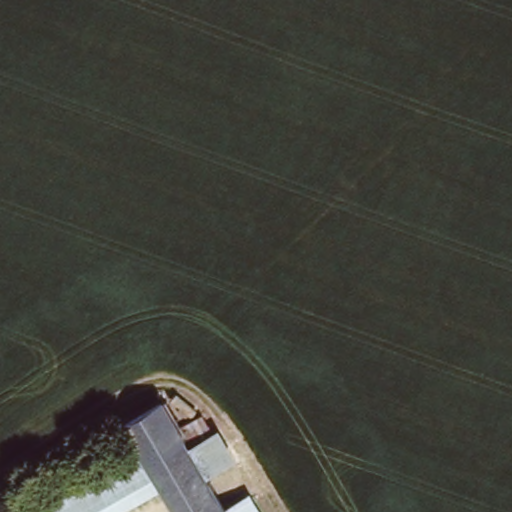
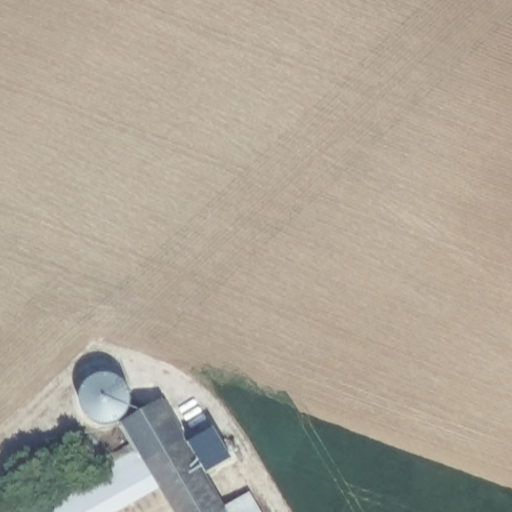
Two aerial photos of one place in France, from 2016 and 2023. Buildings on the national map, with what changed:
new [(83,412),(80,402),(81,393),(83,388),(88,381),(95,377),(103,374),(111,375),(120,378),(126,384),(130,392),(131,402),(128,414),(123,420),(115,425),(106,425),(98,424),(91,421),(83,412)]
unchanged [(155,496),(126,512),(24,512),(133,445),(125,433),(165,409),(183,423),(203,410),(227,454),(205,475),(225,504),(245,490),(258,512),(166,512),(155,496)]

